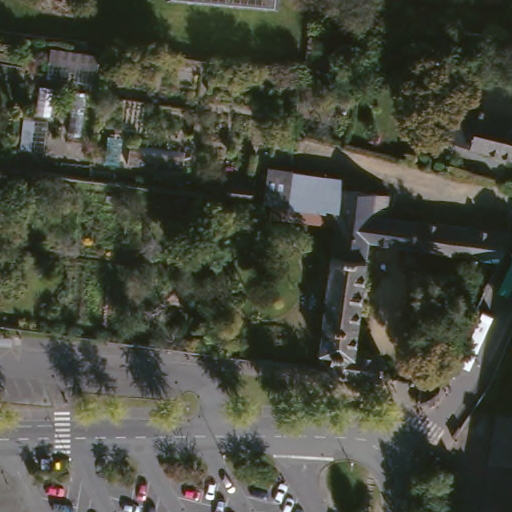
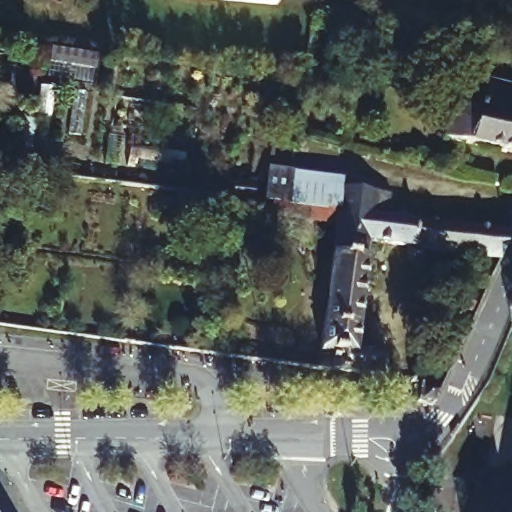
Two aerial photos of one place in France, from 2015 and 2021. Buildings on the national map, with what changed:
unchanged [(512,155),(445,139),(453,105),(479,111),(487,82),(512,88),(512,155)]
unchanged [(348,178),(346,189),(343,213),(331,212),(294,207),(272,204),(276,170),(298,172),(335,177),(348,178)]
unchanged [(244,184),(243,202),(220,198),(217,194),(216,190),(218,185),(222,183),(226,182),(244,184)]
unchanged [(346,189),(394,195),(392,217),(343,213),(346,189)]
unchanged [(448,224),(446,251),(439,250),(436,272),(411,269),(414,247),(375,241),(360,353),(388,357),(386,379),(324,370),(341,228),(329,227),(331,212),(343,213),(392,217),(410,219),(448,224)]
unchanged [(512,244),(506,259),(497,257),(446,251),(448,224),(512,232),(512,244)]
unchanged [(512,332),(512,336),(510,334),(512,332)]
unchanged [(431,393),(425,406),(409,404),(411,391),(431,393)]

